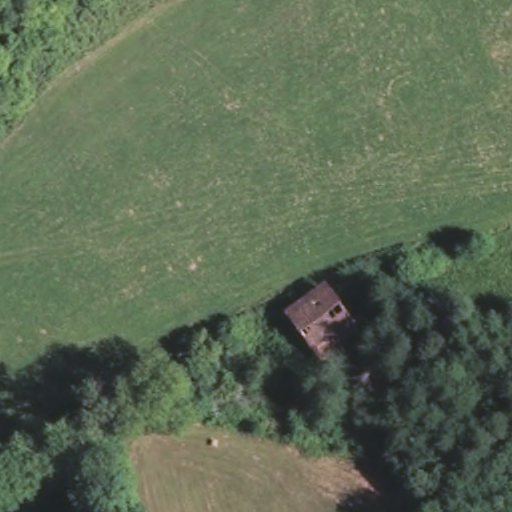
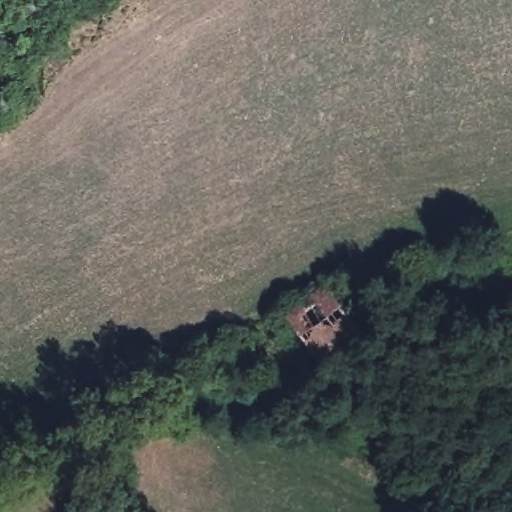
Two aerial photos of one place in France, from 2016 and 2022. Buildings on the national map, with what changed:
unchanged [(326,278),(364,327),(320,362),(303,342),(282,314),(326,278)]

